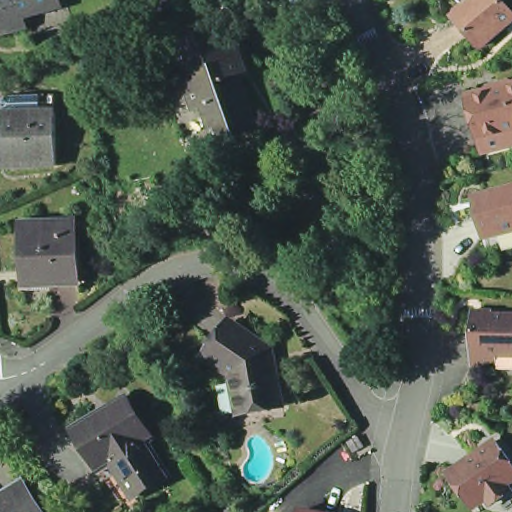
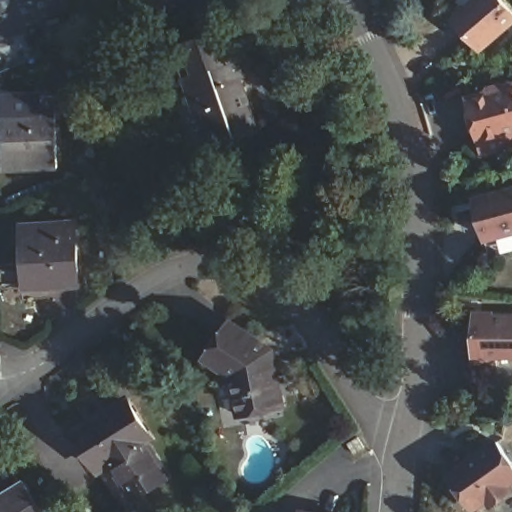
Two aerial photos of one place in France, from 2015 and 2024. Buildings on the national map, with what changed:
unchanged [(59,0),(61,6),(22,17),(25,27),(0,35),(0,0),(59,0)]
unchanged [(161,10),(158,0),(179,0),(180,4),(161,10)]
unchanged [(296,0),(302,0),(297,2),(296,0)]
unchanged [(451,11),(467,0),(495,0),(508,15),(497,24),(500,28),(473,47),(450,18),(451,11)]
unchanged [(232,140),(227,127),(209,133),(202,112),(192,115),(181,80),(190,77),(180,46),(225,31),(236,64),(242,80),(235,82),(253,133),(232,140)]
unchanged [(479,142),(467,98),(512,85),(512,147),(482,155),(479,142)]
unchanged [(5,177),(5,127),(4,111),(56,110),(56,127),(57,176),(5,177)]
unchanged [(487,228),(477,189),(512,179),(512,236),(491,242),(487,228)]
unchanged [(26,227),(76,224),(79,280),(55,281),(29,282),(28,271),(26,227)]
unchanged [(494,348),(493,359),(472,358),(471,311),(512,312),(512,348),(494,348)]
unchanged [(239,418),(232,381),(209,364),(233,327),(263,347),(272,353),(275,369),(283,411),(239,418)]
unchanged [(96,467),(72,427),(93,413),(96,417),(126,400),(147,434),(141,439),(161,472),(127,493),(116,500),(96,467)]
unchanged [(351,442),(360,437),(365,446),(356,451),(351,442)]
unchanged [(497,486),(501,492),(483,503),(479,498),(468,505),(446,471),(489,442),(511,476),(497,486)]
unchanged [(24,482),(43,512),(0,512),(0,495),(24,482)]

